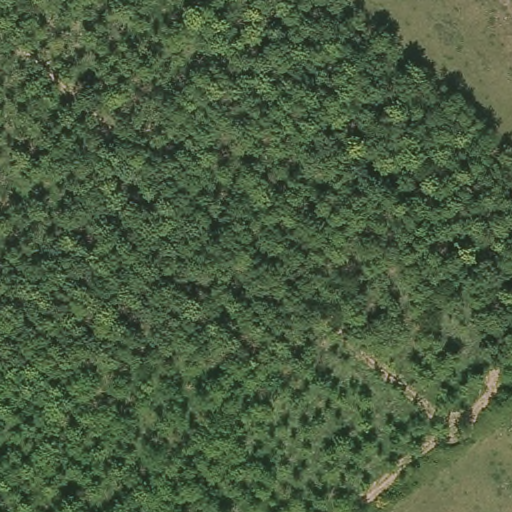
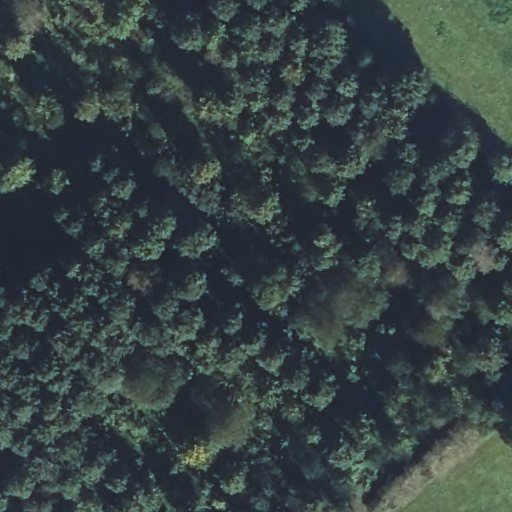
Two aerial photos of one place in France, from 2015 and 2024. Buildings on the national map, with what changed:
[]

